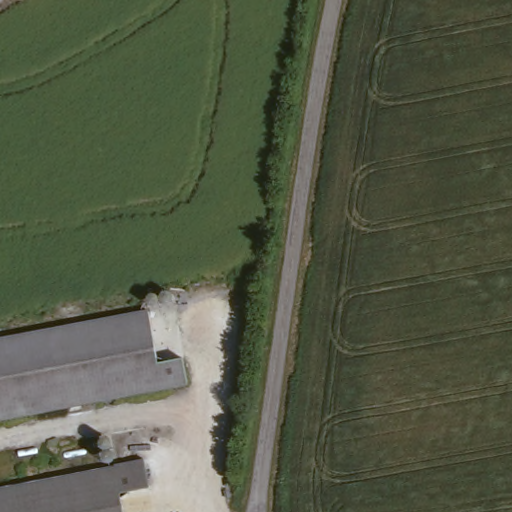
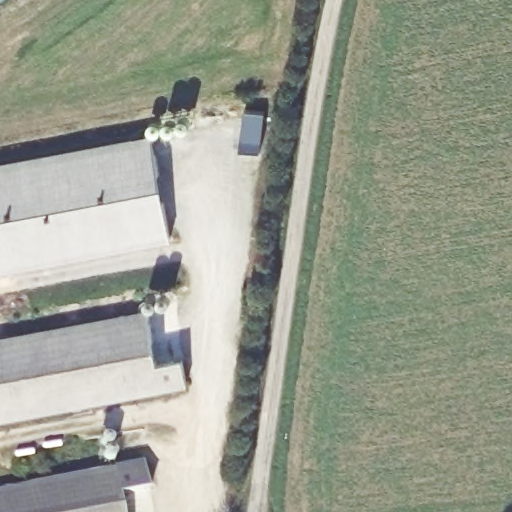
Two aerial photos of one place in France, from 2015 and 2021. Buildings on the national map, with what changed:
new [(151,135),(171,241),(0,274),(0,163),(151,135)]
unchanged [(152,311),(162,363),(186,359),(190,382),(0,417),(0,339),(152,311)]
unchanged [(119,461),(148,455),(154,487),(125,492),(129,512),(0,512),(0,486),(120,464),(119,461)]

